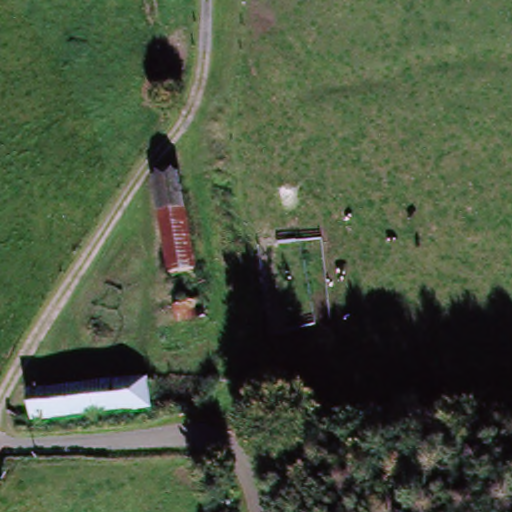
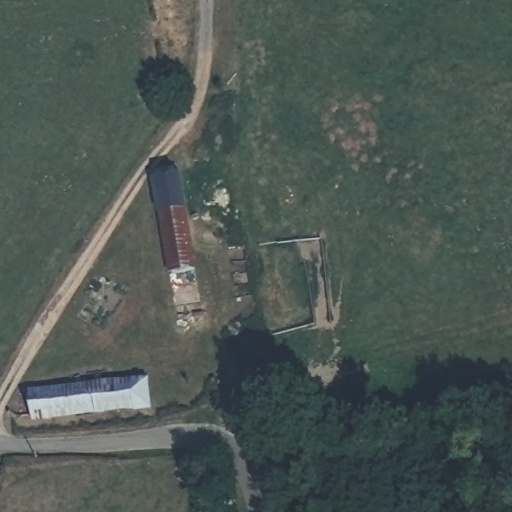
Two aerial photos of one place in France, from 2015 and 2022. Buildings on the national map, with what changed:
unchanged [(144,202),(178,196),(184,196),(204,313),(161,321),(144,202)]
unchanged [(148,377),(150,405),(22,414),(21,400),(41,398),(39,383),(148,377)]

